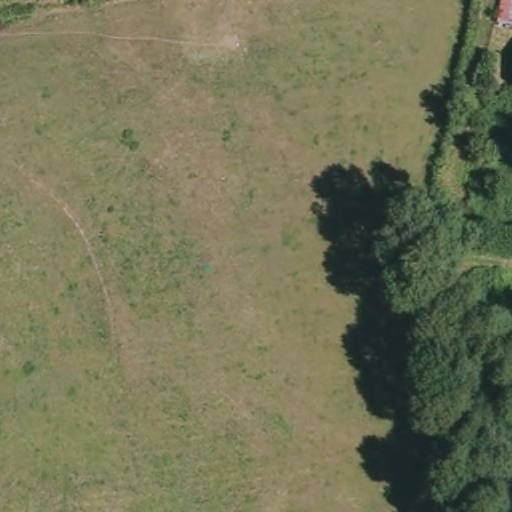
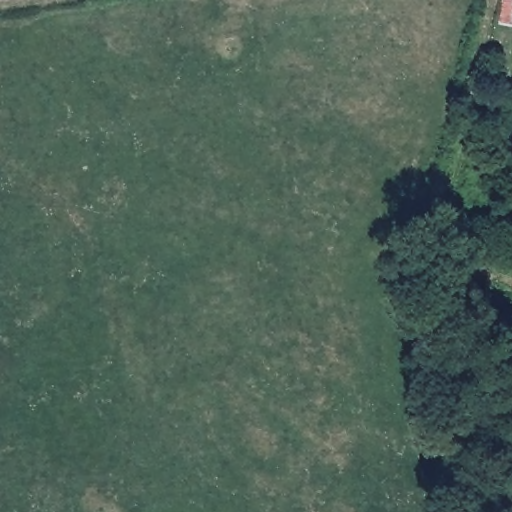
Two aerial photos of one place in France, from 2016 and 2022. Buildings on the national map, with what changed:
unchanged [(502,0),(512,2),(512,27),(499,24),(502,0)]

